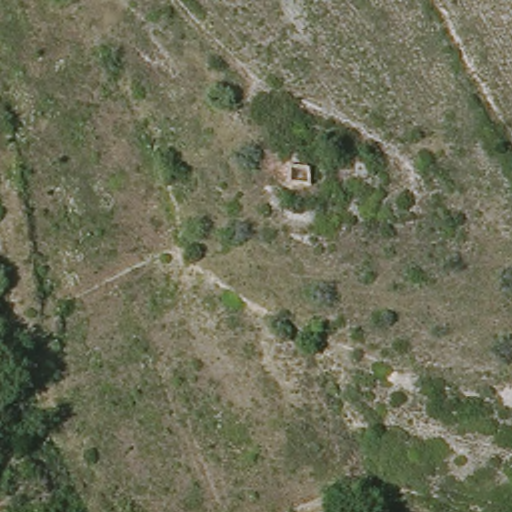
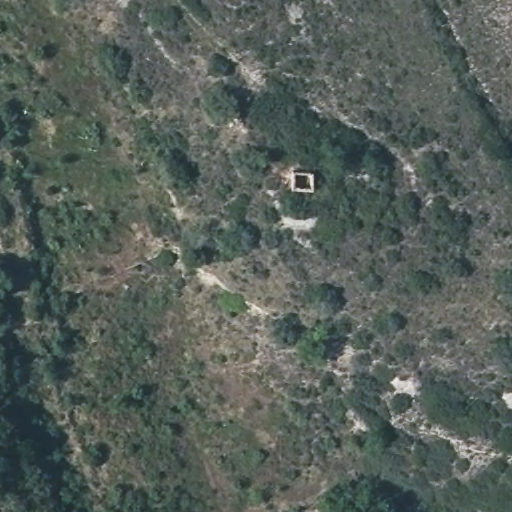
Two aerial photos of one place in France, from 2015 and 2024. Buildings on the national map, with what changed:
unchanged [(313,175),(307,191),(291,185),(297,168),(313,175)]

